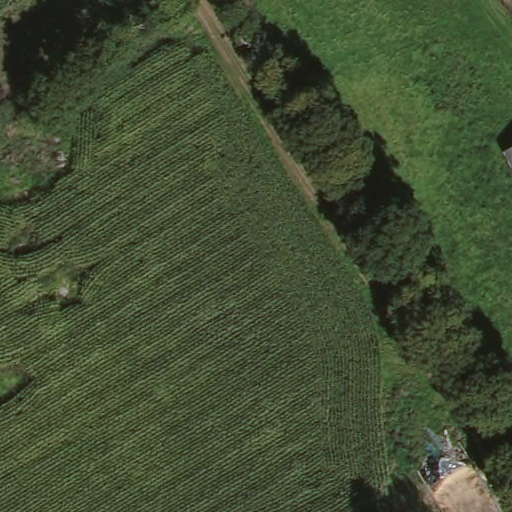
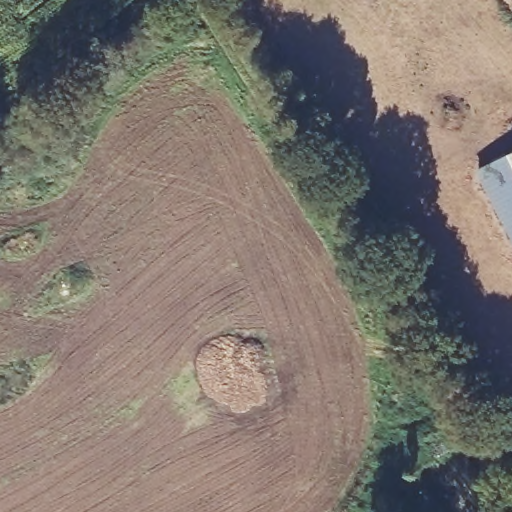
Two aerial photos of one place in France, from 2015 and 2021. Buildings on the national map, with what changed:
demolished [(512,104),(512,152),(490,111),(510,105),(512,104)]
new [(512,151),(512,238),(477,169),(512,151)]

